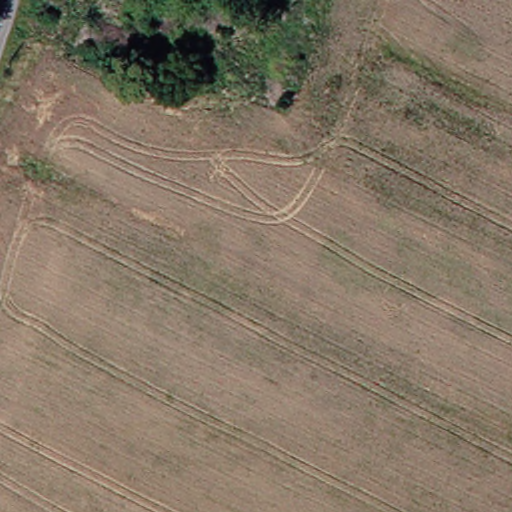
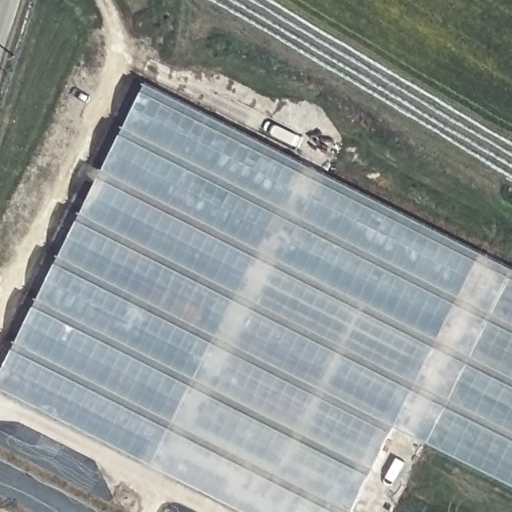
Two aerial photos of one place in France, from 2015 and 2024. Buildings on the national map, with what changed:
new [(350,512),(243,512),(0,388),(0,367),(145,81),(512,265),(512,486),(393,426),(350,512)]

